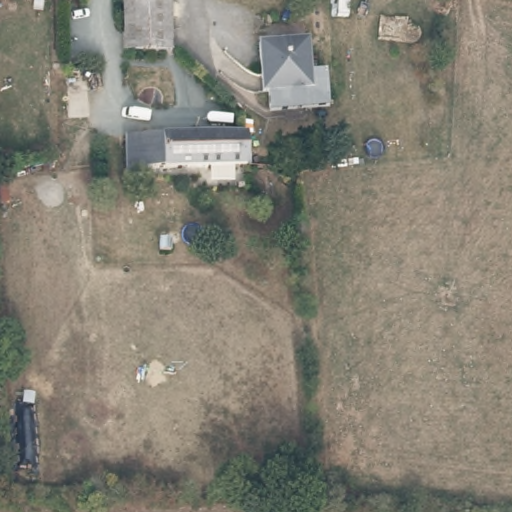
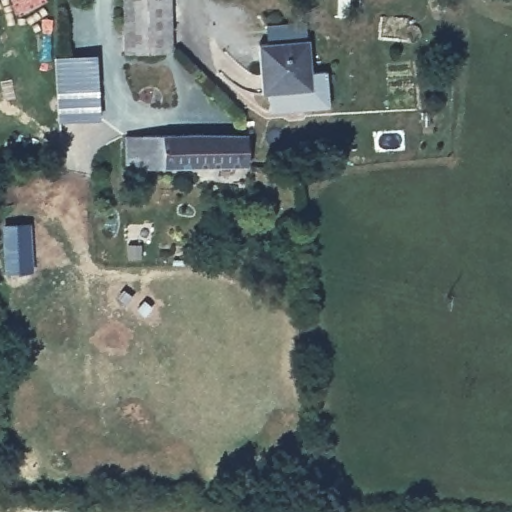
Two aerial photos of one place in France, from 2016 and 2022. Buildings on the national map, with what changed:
unchanged [(125,52),(121,0),(168,0),(172,50),(125,52)]
unchanged [(311,95),(264,99),(258,50),(307,46),(311,95)]
new [(53,57),(96,55),(100,119),(57,122),(53,57)]
unchanged [(231,163),(191,165),(187,133),(239,132),(231,163)]
unchanged [(191,165),(176,165),(132,174),(132,171),(131,167),(135,135),(187,133),(191,165)]

